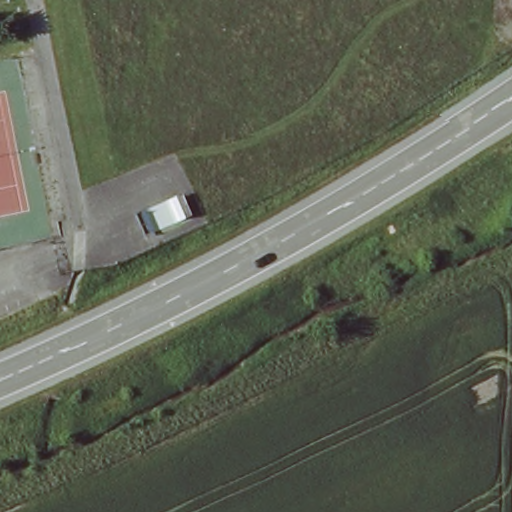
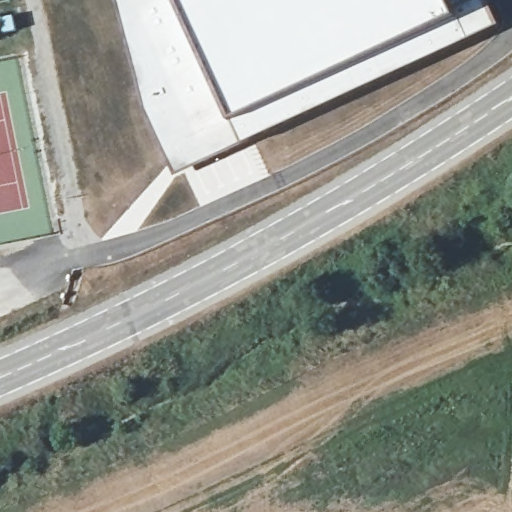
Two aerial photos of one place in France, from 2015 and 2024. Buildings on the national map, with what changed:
new [(458,20),(490,5),(500,30),(175,178),(150,111),(122,0),(449,0),(458,20)]

